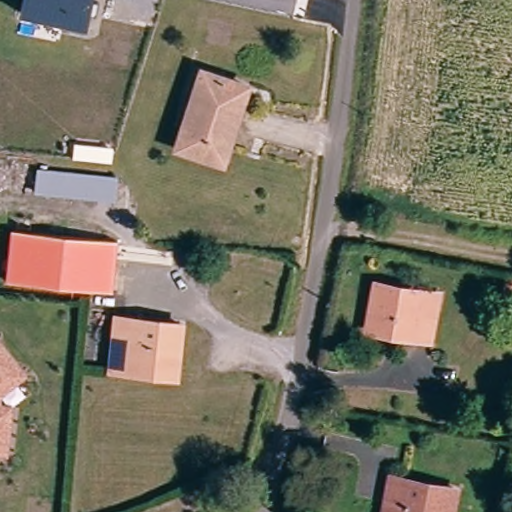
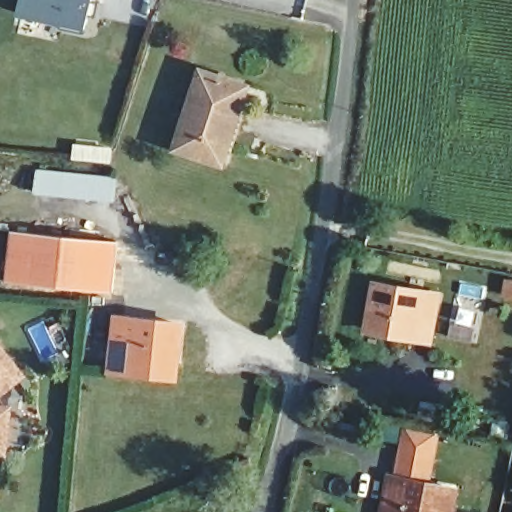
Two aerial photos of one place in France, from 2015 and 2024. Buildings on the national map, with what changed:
unchanged [(89,30),(21,15),(23,0),(94,0),(89,30)]
unchanged [(197,155),(179,150),(201,76),(244,87),(225,151),(221,161),(197,155)]
unchanged [(119,176),(117,202),(35,194),(38,168),(119,176)]
unchanged [(36,228),(109,235),(105,286),(29,279),(25,278),(30,227),(36,228)]
unchanged [(419,344),(368,334),(377,287),(442,300),(439,314),(433,347),(419,344)]
unchanged [(134,376),(110,374),(114,319),(183,324),(180,365),(179,379),(134,376)]
unchanged [(26,368),(28,371),(25,374),(3,389),(2,401),(15,402),(11,446),(0,445),(0,337),(1,336),(26,368)]
new [(441,434),(431,485),(393,478),(403,427),(441,434)]
unchanged [(393,478),(461,490),(456,512),(385,512),(388,500),(393,478)]

